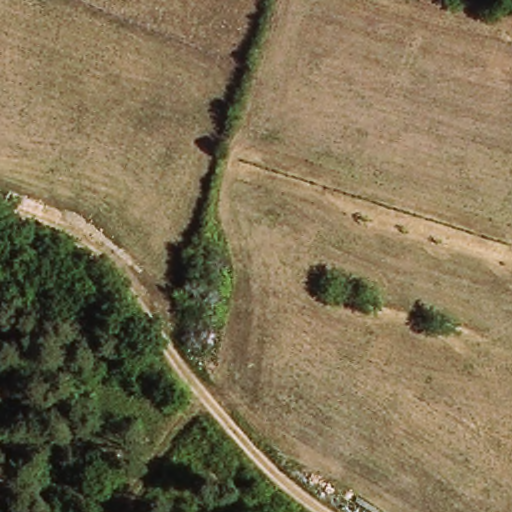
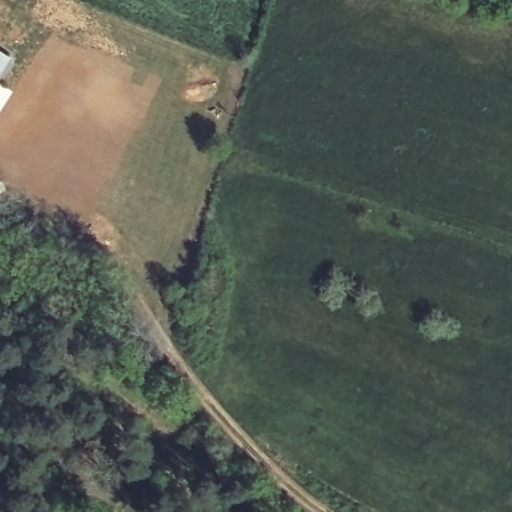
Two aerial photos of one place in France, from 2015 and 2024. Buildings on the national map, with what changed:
new [(12,58),(0,79),(0,50),(12,58)]

